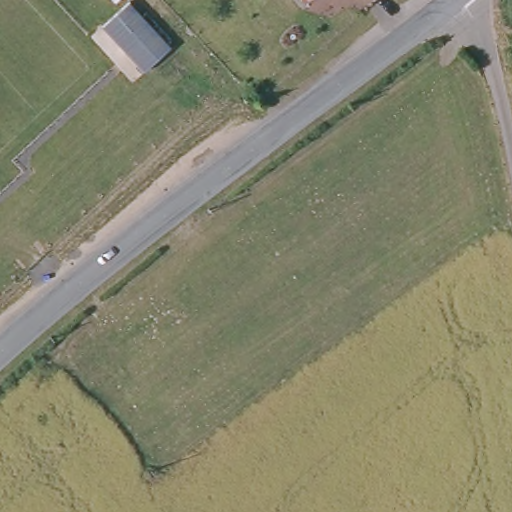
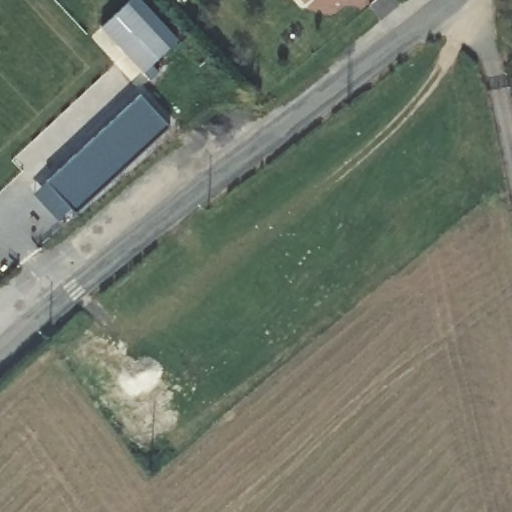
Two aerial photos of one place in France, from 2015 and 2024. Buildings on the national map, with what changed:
unchanged [(163,45),(135,70),(94,26),(121,0),(163,45)]
unchanged [(288,0),(300,0),(294,6),(288,0)]
new [(58,221),(33,193),(140,96),(165,124),(71,208),(58,221)]

